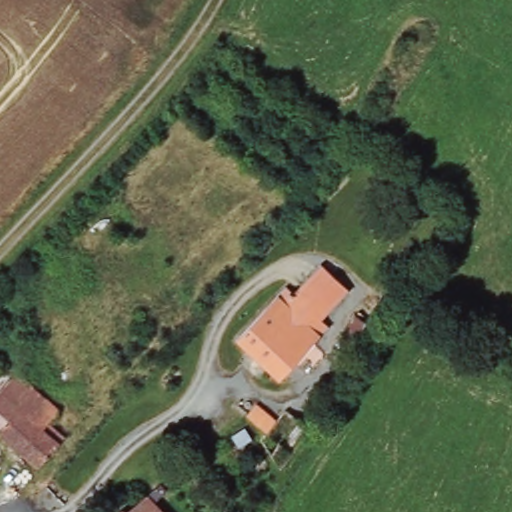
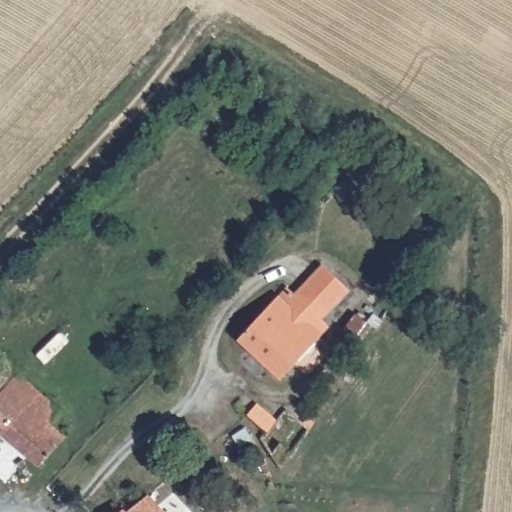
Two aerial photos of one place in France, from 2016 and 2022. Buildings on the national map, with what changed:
unchanged [(279,379),(234,341),(285,285),(294,294),(320,264),(349,289),(321,320),(328,325),(279,379)]
unchanged [(63,411),(53,423),(68,436),(41,465),(0,429),(0,363),(3,359),(63,411)]
unchanged [(137,509),(165,486),(171,493),(159,504),(167,512),(133,512),(137,509)]
unchanged [(129,512),(125,512),(127,510),(129,512)]

